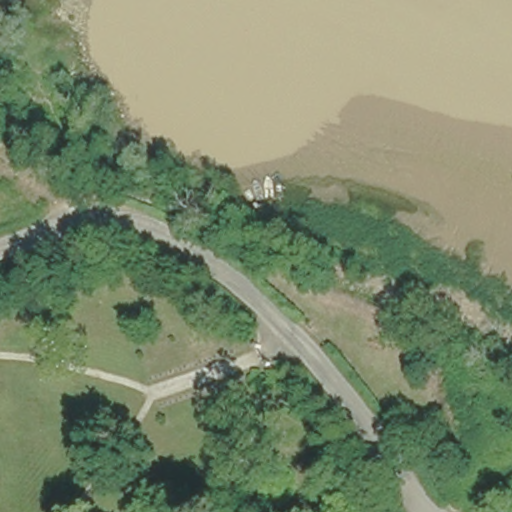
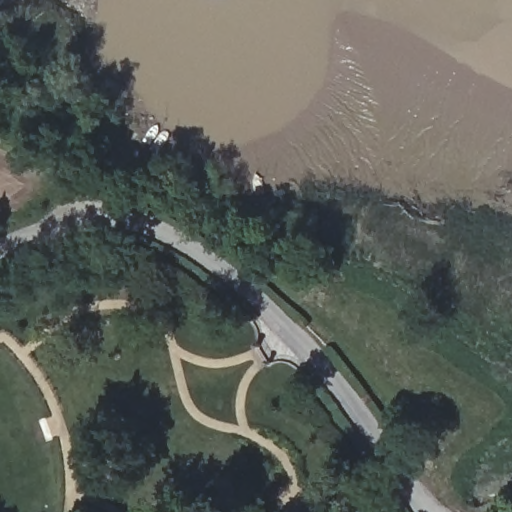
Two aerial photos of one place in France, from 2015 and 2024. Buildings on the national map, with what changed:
[]

